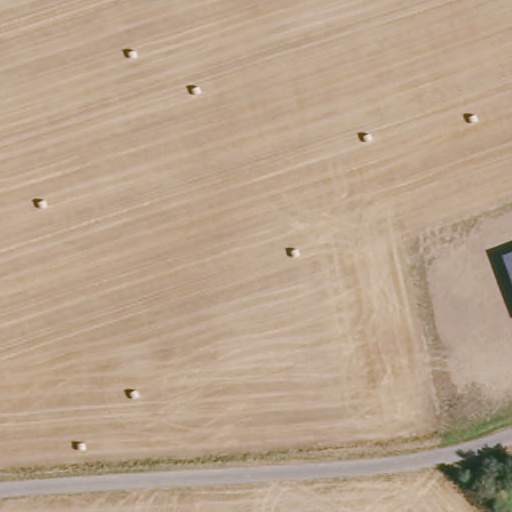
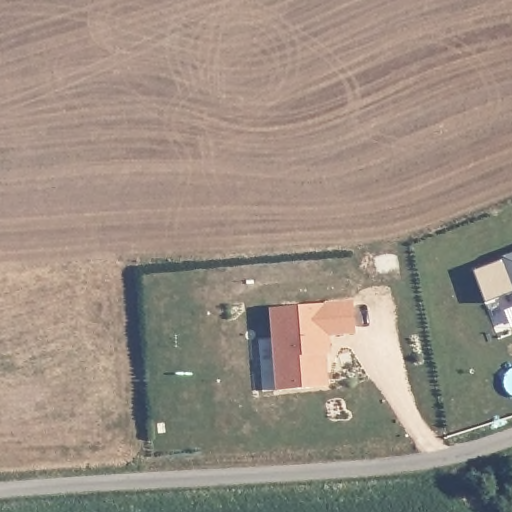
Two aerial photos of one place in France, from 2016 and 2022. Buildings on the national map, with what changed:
unchanged [(512,254),(512,282),(502,257),(512,254)]
new [(354,333),(329,335),(330,354),(325,354),(328,386),(277,390),(270,309),(352,300),(354,333)]

